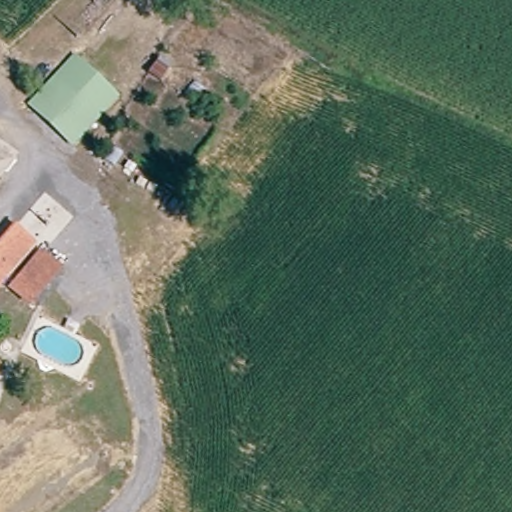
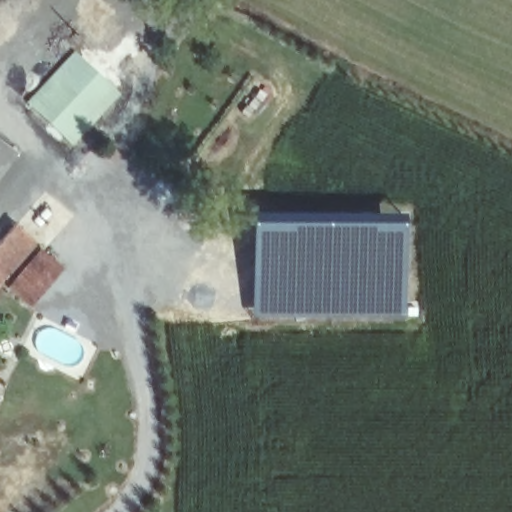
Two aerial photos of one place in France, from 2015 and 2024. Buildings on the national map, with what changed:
unchanged [(77,51),(117,93),(95,117),(100,122),(77,147),(27,100),(77,51)]
new [(341,223),(406,222),(408,317),(304,318),(253,317),(252,223),(341,223)]
unchanged [(7,231),(27,249),(0,284),(0,240),(7,231)]
unchanged [(19,317),(0,306),(0,301),(38,250),(58,265),(19,317)]

